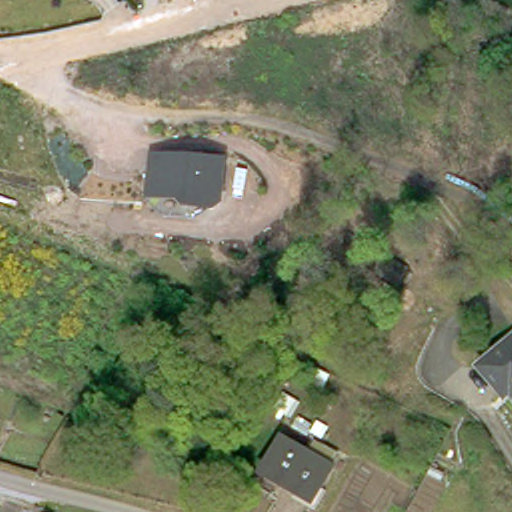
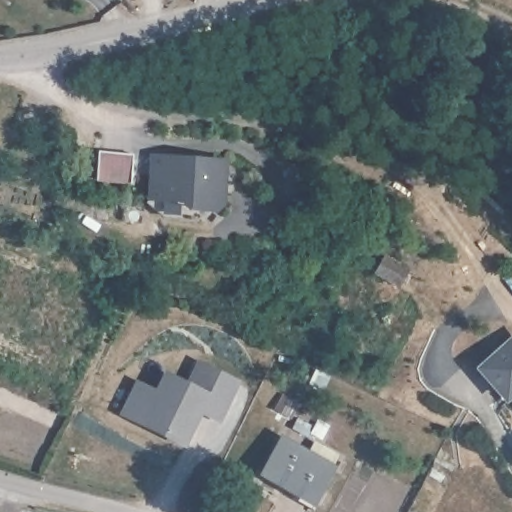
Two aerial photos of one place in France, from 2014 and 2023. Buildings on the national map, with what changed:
new [(128,185),(94,181),(98,151),(131,154),(128,185)]
unchanged [(216,212),(188,212),(181,202),(146,199),(151,154),(226,161),(224,205),(216,212)]
unchanged [(377,271),(386,256),(408,269),(399,283),(377,271)]
unchanged [(505,380),(499,386),(484,367),(512,342),(512,388),(505,380)]
new [(241,380),(221,422),(201,415),(186,447),(118,415),(134,378),(156,387),(163,370),(186,380),(198,357),(241,380)]
unchanged [(277,408),(286,392),(299,400),(290,416),(277,408)]
unchanged [(259,470),(279,434),(304,447),(309,437),(335,451),(309,496),(259,470)]

